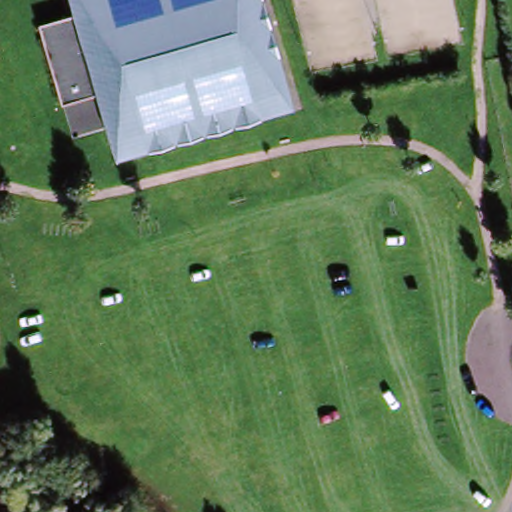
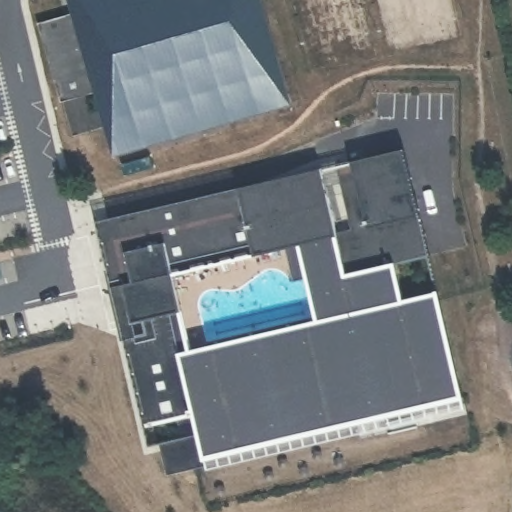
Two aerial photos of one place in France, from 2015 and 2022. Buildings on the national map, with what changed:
unchanged [(263,0),(290,102),(115,149),(98,87),(65,96),(47,26),(79,17),(75,0),(263,0)]
new [(139,316),(129,318),(109,236),(143,229),(140,217),(181,207),(301,179),(337,170),(404,154),(431,263),(396,271),(404,306),(439,297),(464,402),(205,464),(208,471),(167,481),(159,448),(182,443),(178,425),(144,433),(124,346),(124,344),(145,339),(139,316)]
new [(145,339),(124,344),(124,346),(122,346),(109,294),(113,293),(97,227),(140,217),(143,229),(109,236),(129,318),(139,316),(145,339)]
new [(285,254),(299,251),(307,285),(294,288),(285,254)]
new [(511,351),(512,345),(512,358),(511,351)]

